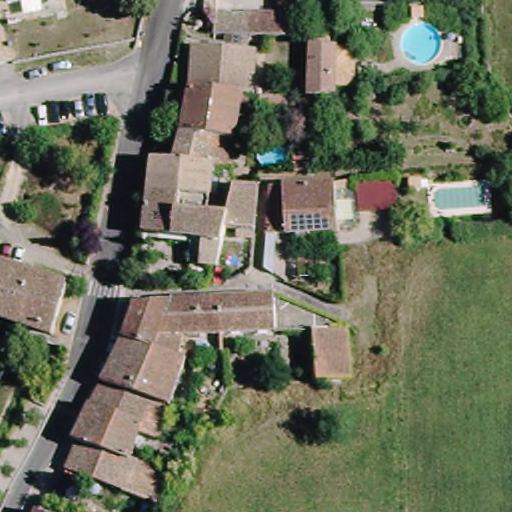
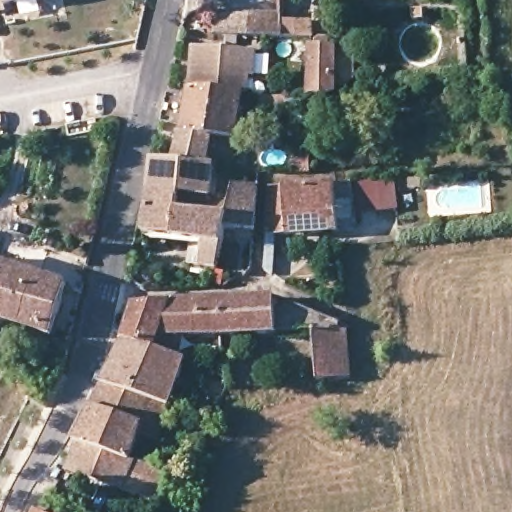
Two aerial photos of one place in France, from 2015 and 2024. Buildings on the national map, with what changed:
unchanged [(3,11),(5,18),(0,19),(0,0),(50,0),(50,2),(3,11)]
unchanged [(283,17),(284,23),(309,24),(309,41),(209,39),(209,15),(283,17)]
unchanged [(309,41),(358,46),(358,76),(340,77),(340,90),(308,95),(309,41)]
unchanged [(183,92),(187,52),(256,52),(254,94),(246,95),(183,92)]
unchanged [(151,159),(173,159),(182,116),(165,112),(169,91),(183,92),(246,95),(236,161),(216,161),(215,189),(185,192),(184,209),(227,214),(236,181),(258,185),(257,228),(233,227),(229,241),(176,234),(137,231),(151,159)]
unchanged [(289,117),(261,120),(260,94),(287,93),(289,117)]
unchanged [(30,145),(30,137),(36,137),(36,145),(30,145)]
unchanged [(295,234),(267,234),(271,181),(338,179),(339,232),(295,234)]
unchanged [(395,182),(395,213),(355,217),(354,186),(395,182)]
unchanged [(53,337),(33,331),(29,342),(0,333),(0,265),(66,286),(53,337)]
unchanged [(90,397),(139,417),(144,401),(102,380),(122,340),(134,300),(175,298),(174,291),(274,286),(350,321),(354,375),(323,377),(312,327),(278,328),(277,333),(165,334),(161,346),(189,356),(160,436),(144,432),(138,452),(175,469),(163,497),(65,468),(90,397)]
unchanged [(36,512),(39,507),(48,512),(36,512)]

